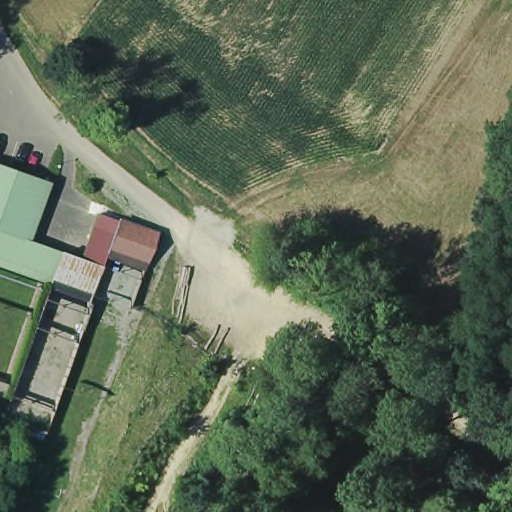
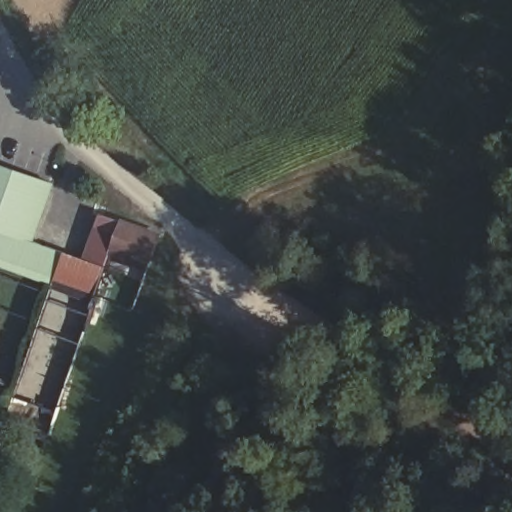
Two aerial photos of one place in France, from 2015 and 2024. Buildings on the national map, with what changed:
unchanged [(34,241),(0,227),(0,162),(55,184),(34,241)]
unchanged [(88,263),(108,219),(123,225),(163,239),(151,266),(113,251),(106,271),(96,298),(58,284),(61,277),(70,256),(88,263)]
unchanged [(70,256),(61,277),(0,253),(0,227),(34,241),(70,256)]

